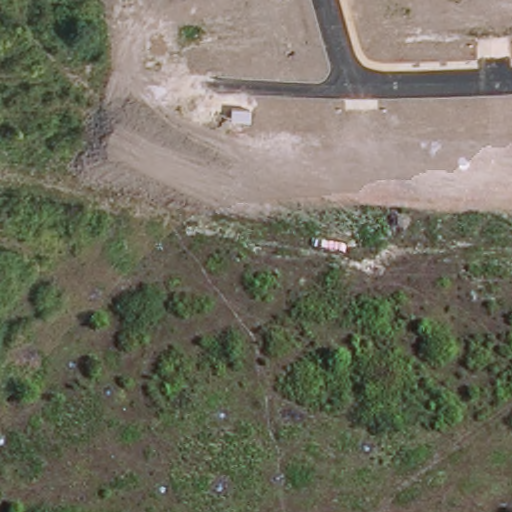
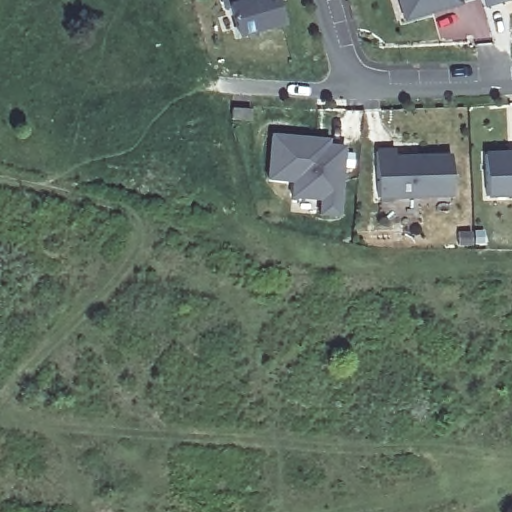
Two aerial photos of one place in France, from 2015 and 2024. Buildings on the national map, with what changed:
new [(235,39),(224,0),(266,0),(267,5),(276,2),(282,25),(235,39)]
new [(423,12),(406,17),(401,0),(461,0),(462,1),(444,7),(434,9),(423,12)]
new [(485,6),(483,0),(505,0),(485,6)]
new [(294,200),(296,182),(269,180),(273,137),(319,141),(318,147),(343,150),(337,218),(320,217),(321,201),(294,200)]
new [(378,202),(376,151),(394,150),(394,157),(450,155),(450,198),(378,202)]
new [(487,155),(512,154),(512,196),(488,197),(487,155)]

